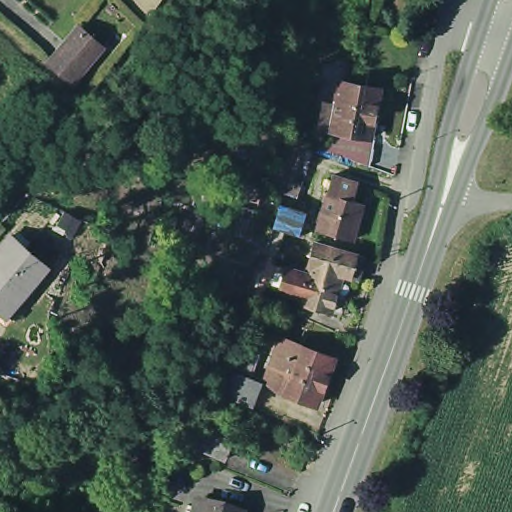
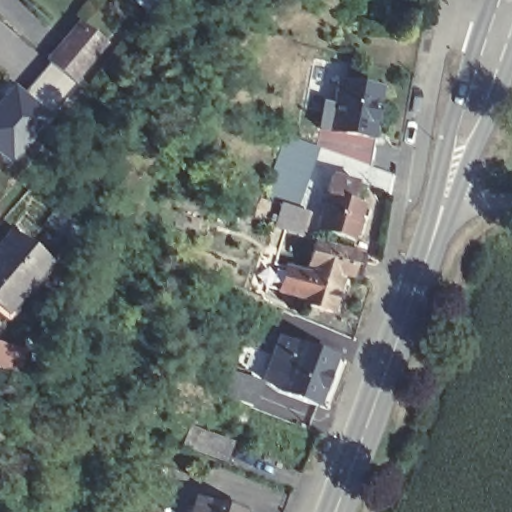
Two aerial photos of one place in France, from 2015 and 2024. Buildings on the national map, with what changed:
demolished [(79,30),(101,49),(88,64),(71,84),(62,75),(48,64),(65,45),(79,30)]
new [(101,49),(88,64),(71,84),(62,75),(48,64),(65,45),(79,30),(101,49)]
new [(48,64),(71,84),(14,166),(0,155),(0,109),(20,84),(26,93),(48,64)]
unchanged [(374,140),(367,166),(322,153),(328,136),(315,132),(322,104),(332,109),(340,79),(385,93),(374,140)]
unchanged [(356,242),(320,231),(327,205),(323,204),(326,190),(331,192),(336,175),(360,183),(355,201),(367,204),(356,242)]
unchanged [(285,200),(314,209),(307,233),(282,221),(280,220),(285,200)]
unchanged [(11,231),(45,260),(9,303),(1,313),(0,312),(0,243),(11,231)]
unchanged [(291,303),(293,297),(273,290),(280,266),(300,272),(305,253),(308,243),(329,248),(359,257),(352,280),(335,277),(325,312),(291,303)]
unchanged [(342,359),(320,410),(263,389),(250,413),(222,401),(236,374),(264,381),(281,338),(342,359)]
unchanged [(264,347),(251,378),(234,371),(247,340),(264,347)]
unchanged [(229,444),(220,465),(191,453),(199,433),(229,444)]
unchanged [(165,465),(158,481),(133,470),(140,454),(165,465)]
unchanged [(202,504),(228,512),(199,512),(202,504)]

